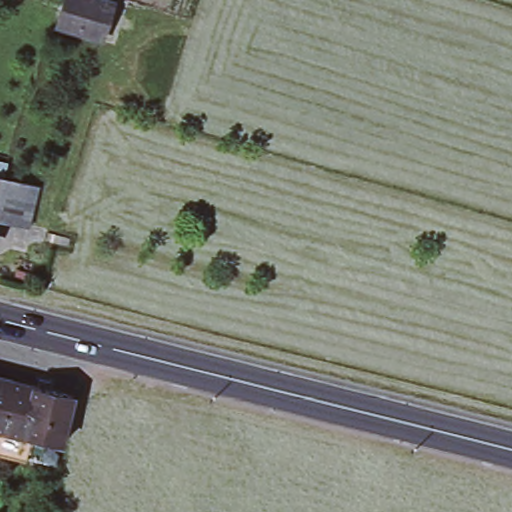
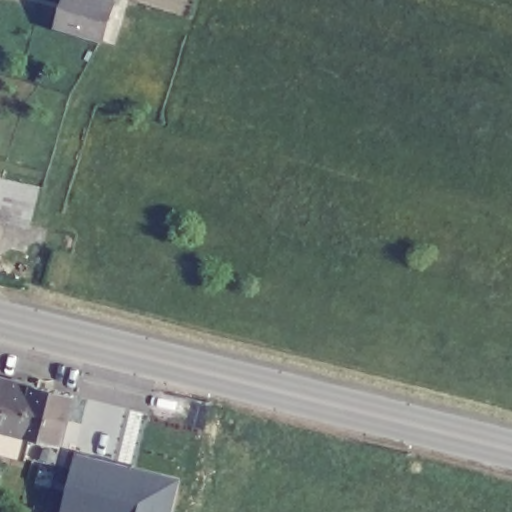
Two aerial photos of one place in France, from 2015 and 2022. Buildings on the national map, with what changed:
unchanged [(118,0),(108,38),(52,25),(61,0),(118,0)]
unchanged [(0,207),(0,176),(7,178),(0,207)]
unchanged [(0,207),(7,178),(19,181),(39,187),(29,226),(8,221),(0,219),(0,207)]
unchanged [(29,438),(0,431),(0,379),(40,387),(29,438)]
unchanged [(76,396),(64,447),(29,438),(40,387),(76,396)]
new [(77,453),(181,478),(173,512),(62,512),(77,453)]

